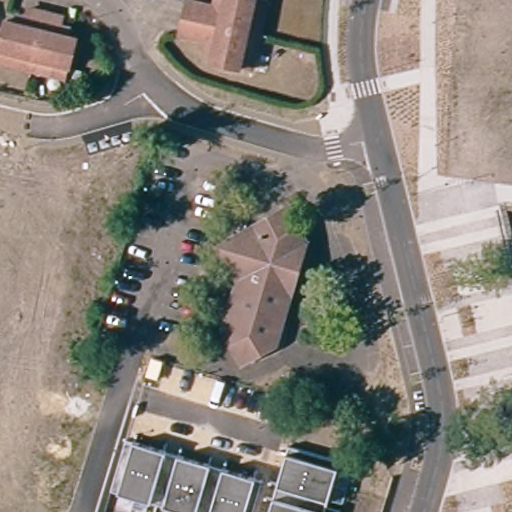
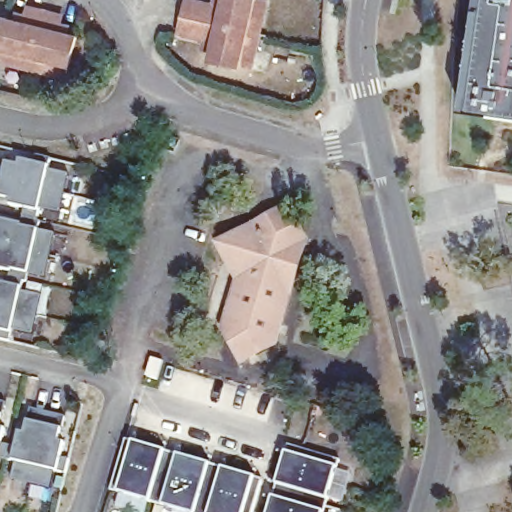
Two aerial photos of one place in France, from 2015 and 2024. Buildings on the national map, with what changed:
unchanged [(214,53),(219,36),(196,30),(183,28),(187,10),(189,0),(222,0),(226,1),(226,0),(269,0),(263,27),(260,40),(255,61),(214,53)]
new [(464,120),(464,114),(477,15),(468,14),(470,0),(512,0),(512,127),(464,120)]
unchanged [(62,15),(58,31),(76,35),(66,76),(30,67),(0,60),(0,40),(6,19),(23,22),(28,5),(45,10),(62,15)]
new [(18,164),(33,167),(35,159),(49,162),(47,173),(68,178),(63,197),(0,184),(0,165),(17,170),(18,164)]
new [(59,217),(39,213),(36,225),(21,221),(24,212),(9,210),(10,204),(0,201),(0,184),(63,197),(59,217)]
unchanged [(249,341),(248,337),(242,340),(234,320),(235,310),(232,309),(246,260),(239,257),(227,233),(234,234),(229,226),(260,210),(264,215),(268,211),(290,216),(300,229),(306,225),(309,231),(295,280),(283,321),(277,320),(274,331),(267,334),(249,341)]
new [(21,221),(36,225),(39,225),(37,234),(54,237),(49,260),(0,249),(0,224),(20,229),(21,221)]
new [(44,282),(28,278),(26,286),(22,285),(8,282),(9,276),(0,274),(0,249),(49,260),(44,282)]
new [(8,282),(22,285),(20,295),(40,300),(36,320),(0,311),(0,287),(6,288),(8,282)]
new [(31,338),(11,334),(9,345),(0,344),(0,311),(36,320),(31,338)]
new [(0,428),(0,406),(5,407),(0,428)]
new [(9,450),(15,451),(19,436),(24,437),(30,413),(48,417),(31,488),(12,484),(16,467),(5,464),(9,450)]
new [(48,417),(65,421),(59,445),(65,447),(61,462),(69,464),(66,478),(54,475),(50,493),(31,488),(48,417)]
new [(1,448),(9,450),(5,464),(0,463),(0,432),(5,433),(1,448)]
unchanged [(253,512),(187,512),(113,491),(126,440),(261,480),(253,512)]
unchanged [(343,502),(329,500),(327,505),(340,510),(339,512),(271,512),(289,445),(353,463),(343,502)]

